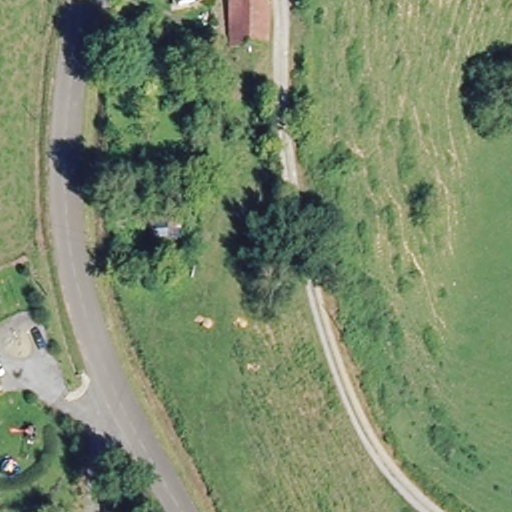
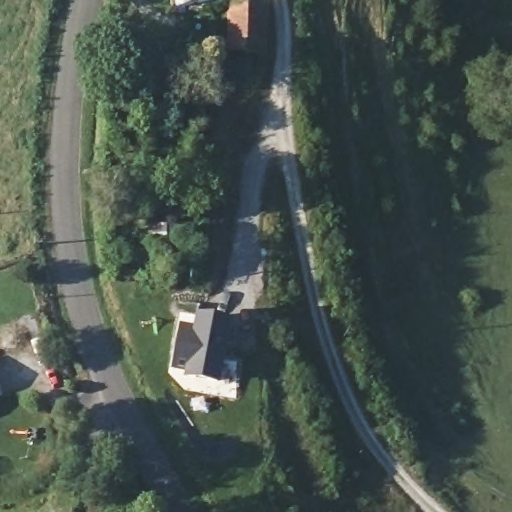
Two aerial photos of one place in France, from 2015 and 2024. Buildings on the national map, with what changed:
unchanged [(170,5),(169,0),(205,0),(205,4),(170,5)]
unchanged [(265,46),(226,46),(224,2),(263,3),(265,46)]
new [(231,320),(221,387),(184,379),(185,371),(172,368),(180,324),(192,326),(194,314),(231,320)]

